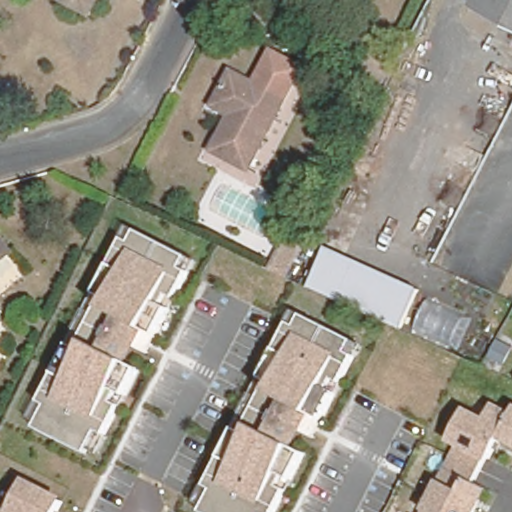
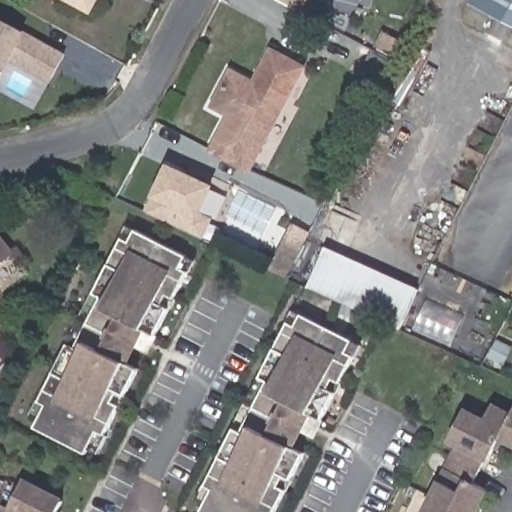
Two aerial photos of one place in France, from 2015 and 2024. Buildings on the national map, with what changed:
unchanged [(92,1),(89,0),(93,0),(92,1)]
new [(280,0),(309,0),(302,11),(280,0)]
unchanged [(474,0),(512,0),(512,18),(474,0)]
new [(9,59),(1,75),(0,75),(0,19),(24,31),(67,53),(50,83),(9,59)]
new [(372,51),(396,64),(382,91),(357,77),(372,51)]
unchanged [(255,81),(272,52),(303,68),(247,167),(211,147),(231,113),(215,103),(235,70),(255,81)]
new [(144,210),(152,194),(153,195),(168,162),(215,185),(203,212),(214,216),(204,238),(144,210)]
unchanged [(273,266),(257,258),(277,216),(294,224),(273,266)]
unchanged [(96,458),(28,425),(129,221),(202,262),(96,458)]
unchanged [(0,247),(0,230),(8,239),(0,247)]
unchanged [(326,246),(418,290),(398,329),(306,285),(326,246)]
unchanged [(293,309),(365,345),(280,512),(203,512),(194,507),(293,309)]
unchanged [(449,442),(466,407),(488,417),(494,403),(512,414),(512,449),(500,442),(477,483),(494,490),(482,512),(426,512),(458,447),(449,442)]
unchanged [(7,512),(25,477),(69,498),(62,512),(7,512)]

